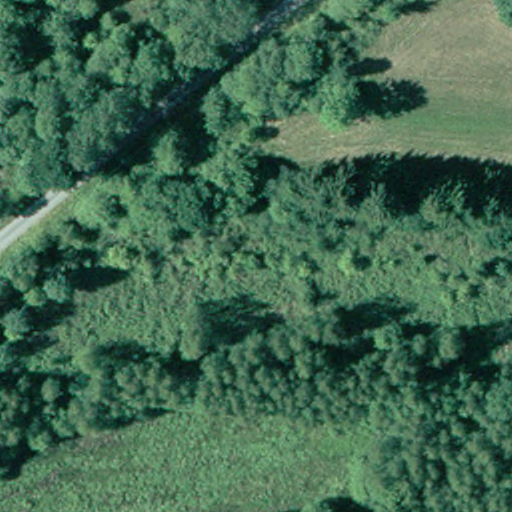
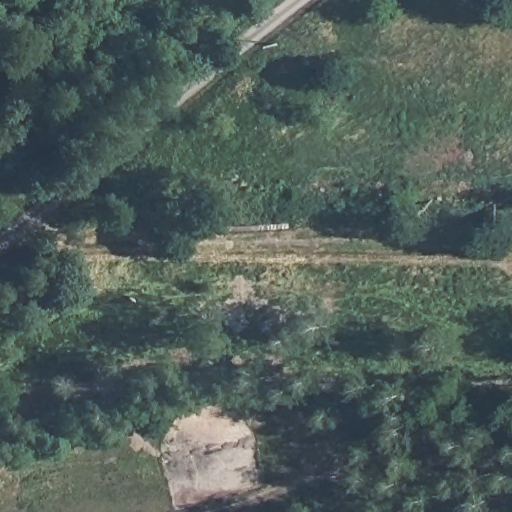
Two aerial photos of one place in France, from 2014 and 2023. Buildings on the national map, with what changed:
[]

